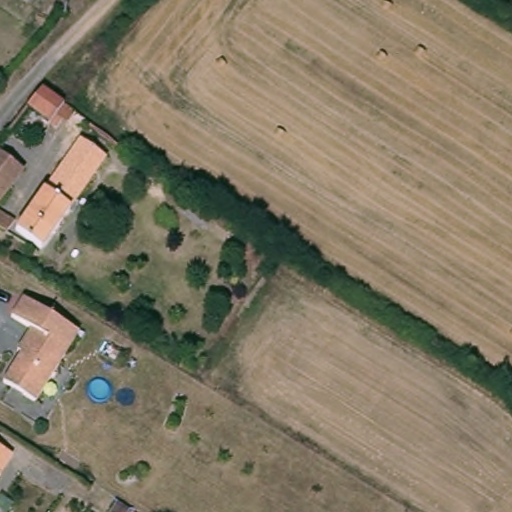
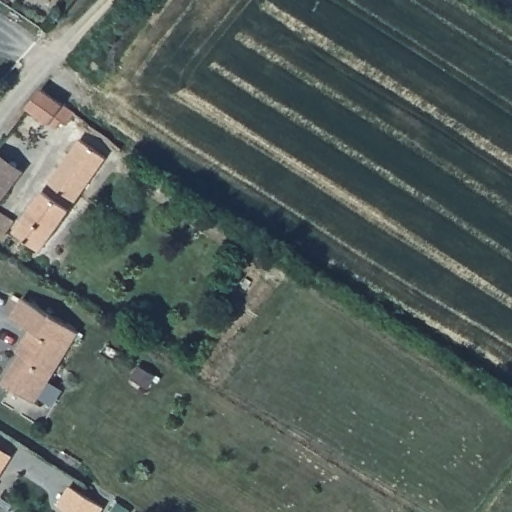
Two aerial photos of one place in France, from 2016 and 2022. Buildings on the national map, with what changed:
unchanged [(85,120),(77,132),(61,121),(56,128),(27,107),(41,89),(85,120)]
unchanged [(106,157),(42,248),(16,230),(80,138),(106,157)]
unchanged [(22,171),(8,188),(0,199),(0,154),(22,171)]
unchanged [(15,221),(6,233),(0,229),(0,212),(15,221)]
unchanged [(11,316),(22,297),(79,331),(35,402),(3,382),(21,353),(17,350),(22,342),(30,328),(11,316)]
new [(70,485),(104,506),(100,512),(70,512),(58,504),(70,485)]

